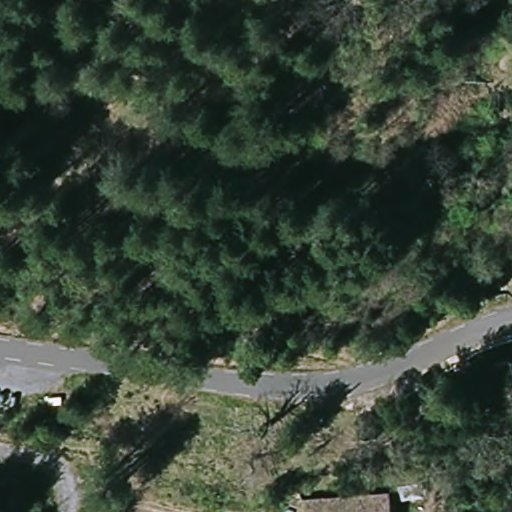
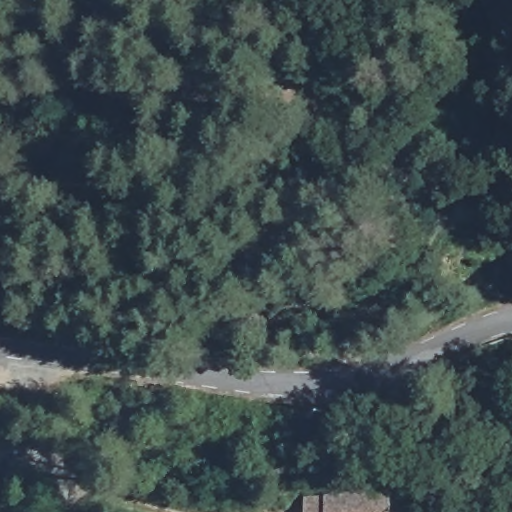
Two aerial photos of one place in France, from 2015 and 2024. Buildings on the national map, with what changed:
unchanged [(490,145),(494,127),(512,130),(507,151),(490,145)]
unchanged [(393,490),(394,512),(327,512),(326,495),(393,490)]

